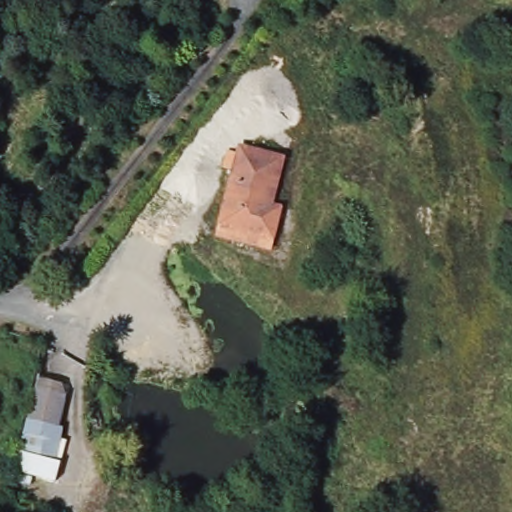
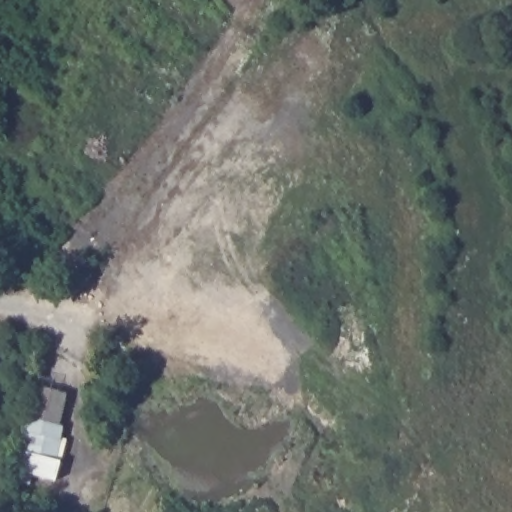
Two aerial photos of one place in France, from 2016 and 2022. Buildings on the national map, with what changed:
demolished [(281,158),(273,206),(281,208),(273,247),(221,237),(233,174),(223,173),(226,157),(236,158),(237,151),(281,158)]
unchanged [(29,385),(63,392),(55,421),(60,422),(53,458),(13,447),(29,385)]

